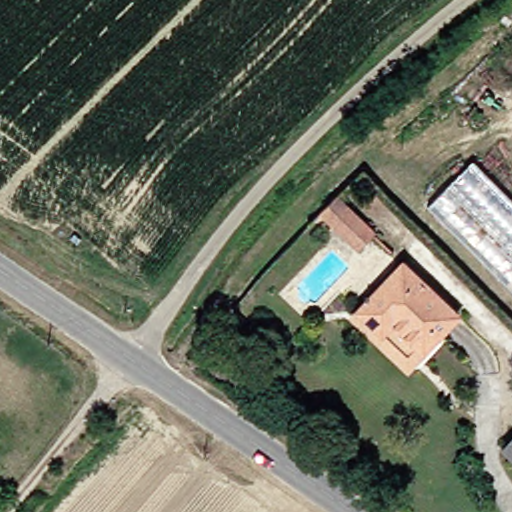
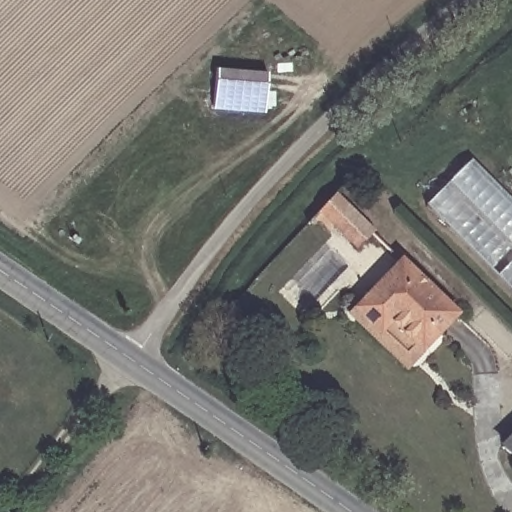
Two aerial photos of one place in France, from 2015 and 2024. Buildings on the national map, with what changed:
new [(264,111),(213,107),(216,67),(265,71),(264,111)]
unchanged [(512,197),(512,286),(427,202),(474,159),(512,197)]
unchanged [(342,192),(378,227),(358,249),(323,214),(342,192)]
unchanged [(425,348),(384,312),(374,322),(357,306),(406,258),(435,288),(460,313),(453,320),(425,348)]
unchanged [(374,322),(384,312),(425,348),(407,368),(351,312),(357,306),(374,322)]
unchanged [(512,432),(512,454),(501,443),(512,432)]

